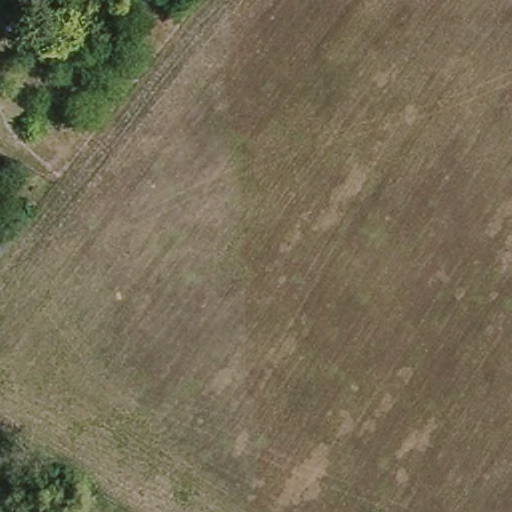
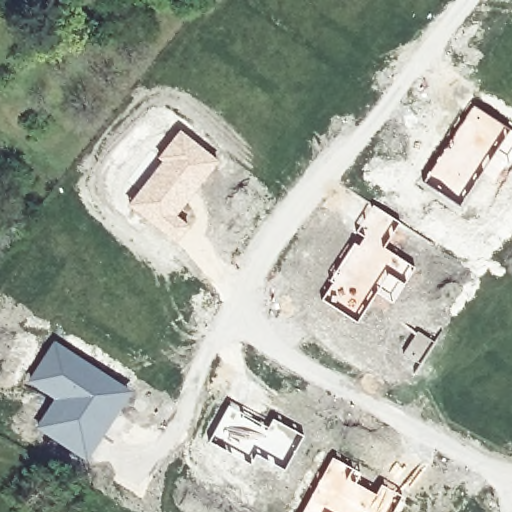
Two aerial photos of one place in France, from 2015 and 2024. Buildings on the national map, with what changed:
unchanged [(34,0),(44,0),(41,4),(34,0)]
new [(473,104),(505,125),(491,145),(490,144),(473,133),(466,137),(464,135),(463,137),(460,135),(457,138),(452,135),(473,104)]
new [(160,161),(155,157),(179,128),(218,160),(177,214),(189,225),(174,242),(126,204),(160,161)]
new [(54,338),(131,390),(85,460),(34,426),(53,399),(26,381),(54,338)]
new [(228,398),(267,424),(272,416),(303,434),(284,465),(254,447),(248,456),(209,435),(228,398)]
new [(332,455),(353,469),(350,475),(375,491),(380,481),(397,493),(386,512),(330,512),(325,509),(323,512),(301,512),(332,455)]

